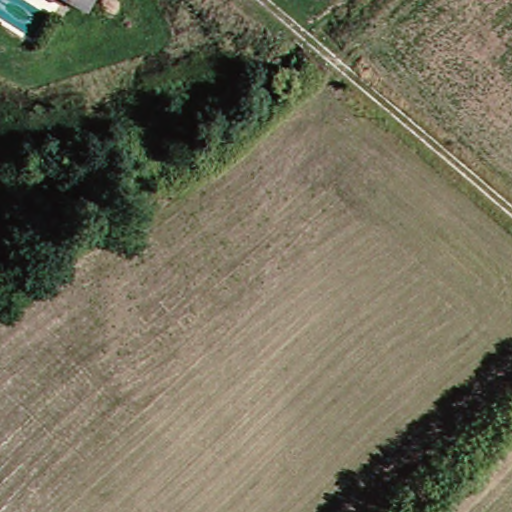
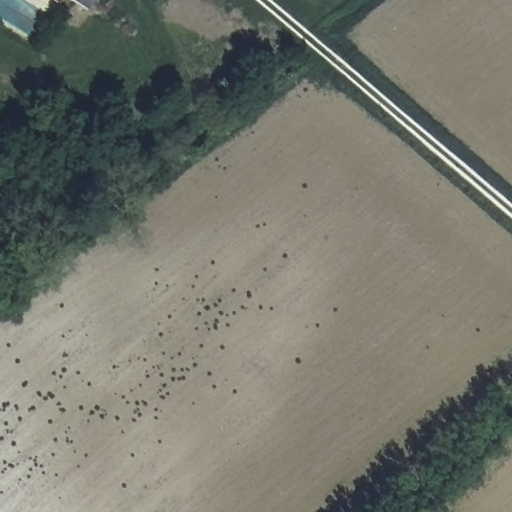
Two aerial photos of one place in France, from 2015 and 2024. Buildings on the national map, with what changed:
unchanged [(66,1),(64,0),(90,0),(83,14),(66,1)]

